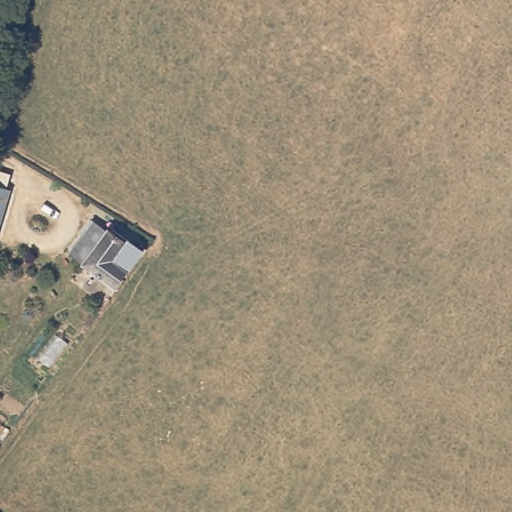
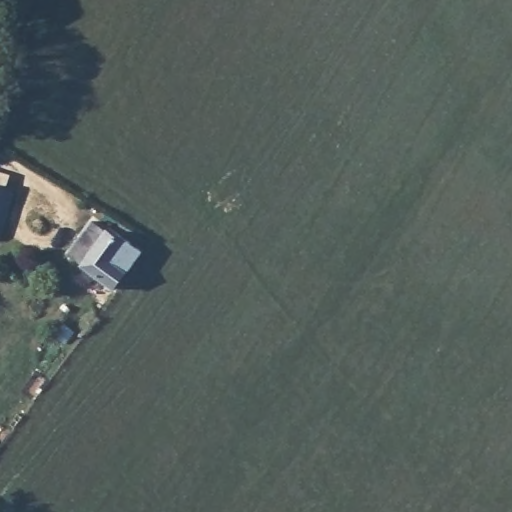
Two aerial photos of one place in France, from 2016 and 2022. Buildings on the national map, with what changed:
unchanged [(0,193),(0,186),(2,186),(0,193)]
unchanged [(70,255),(93,219),(124,240),(142,251),(133,264),(117,286),(70,255)]

